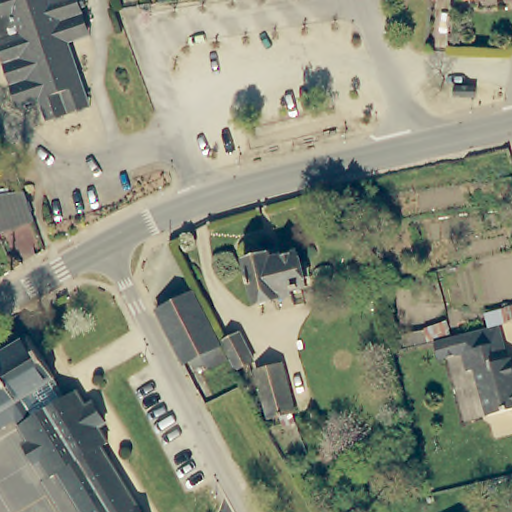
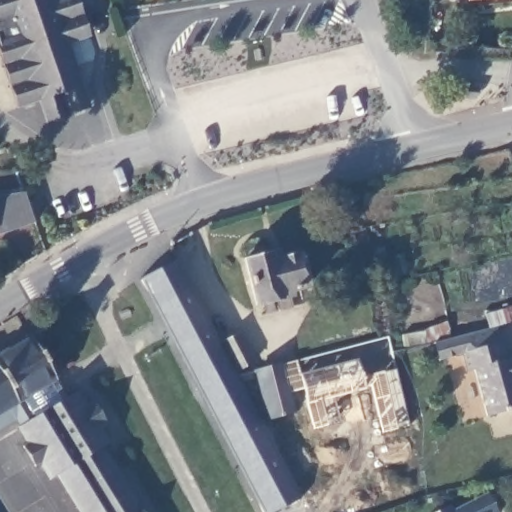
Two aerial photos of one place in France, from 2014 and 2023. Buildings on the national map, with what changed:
unchanged [(82,0),(85,8),(80,11),(90,35),(68,44),(91,108),(53,125),(44,101),(23,109),(0,45),(0,0),(77,0),(78,1),(82,0)]
unchanged [(512,0),(512,1),(466,6),(465,0),(512,0)]
unchanged [(2,231),(0,227),(0,198),(31,198),(43,228),(2,231)]
unchanged [(2,231),(0,232),(0,227),(2,231)]
unchanged [(284,255),(285,261),(303,257),(312,292),(296,296),(297,302),(263,310),(250,263),(284,255)]
unchanged [(184,363),(158,311),(192,293),(218,345),(184,363)]
unchanged [(506,306),(512,305),(512,318),(510,318),(506,306)]
unchanged [(431,358),(427,341),(489,326),(494,343),(455,352),(431,358)]
unchanged [(239,334),(253,361),(237,369),(223,342),(239,334)]
unchanged [(31,444),(37,440),(28,424),(41,416),(28,397),(0,414),(0,359),(36,337),(60,377),(54,380),(66,401),(81,391),(90,406),(95,403),(98,401),(110,421),(107,423),(103,426),(112,442),(107,444),(131,485),(96,507),(90,511),(67,471),(58,476),(49,461),(43,464),(31,444)]
unchanged [(498,359),(506,357),(511,376),(509,377),(512,390),(512,409),(479,417),(468,370),(460,371),(455,352),(494,343),(498,359)]
new [(218,345),(300,499),(273,512),(264,512),(184,363),(218,345)]
unchanged [(295,414),(293,415),(295,425),(283,427),(281,418),(270,420),(258,371),(284,365),(295,414)]
unchanged [(90,511),(96,507),(131,485),(147,512),(91,512),(90,511)]

